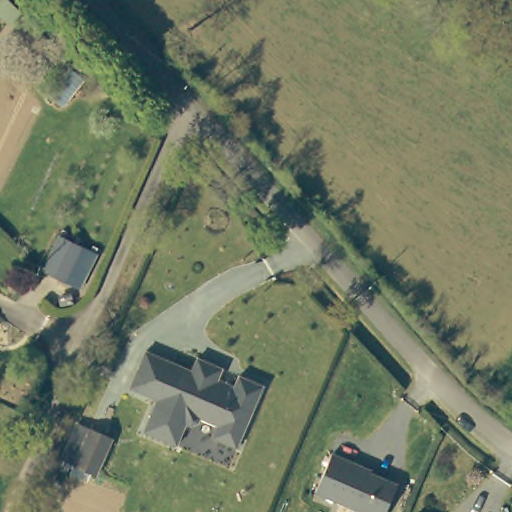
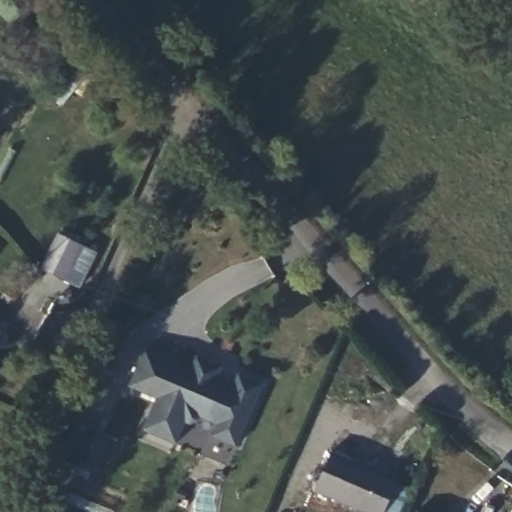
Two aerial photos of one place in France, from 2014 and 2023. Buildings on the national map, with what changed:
unchanged [(64,107),(42,85),(65,55),(86,80),(64,107)]
unchanged [(59,226),(81,236),(65,273),(42,263),(59,226)]
unchanged [(143,429),(157,398),(130,385),(148,349),(194,370),(199,358),(210,363),(199,386),(184,419),(183,422),(174,443),(143,429)]
unchanged [(234,447),(210,436),(216,426),(199,418),(197,420),(195,422),(192,423),(189,424),(186,423),(183,422),(184,419),(199,386),(210,363),(222,368),(217,380),(235,388),(240,376),(262,386),(234,447)]
unchanged [(68,465),(85,429),(107,439),(91,475),(68,465)]
unchanged [(359,464),(394,480),(380,512),(372,512),(316,487),(333,448),(361,460),(359,464)]

